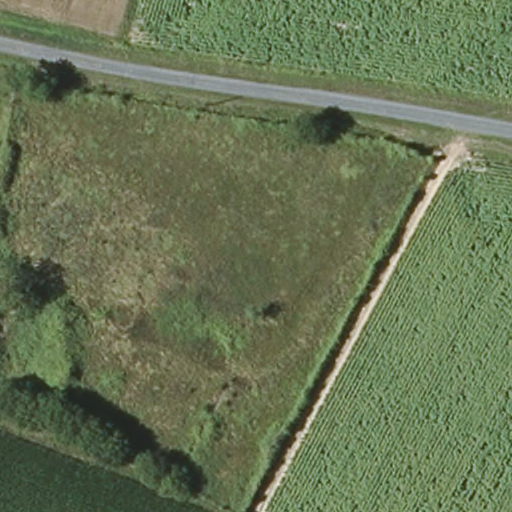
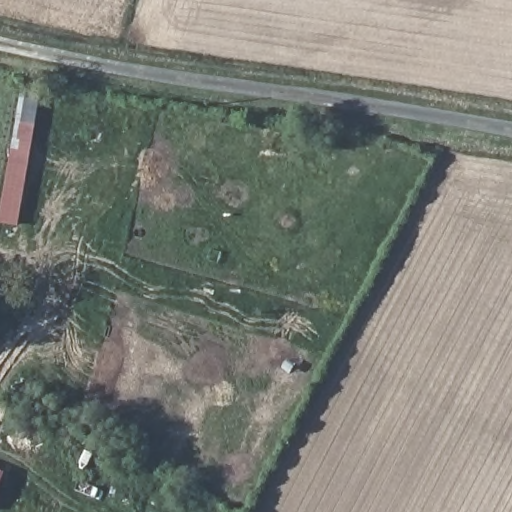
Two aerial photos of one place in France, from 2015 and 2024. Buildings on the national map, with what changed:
new [(21,92),(40,96),(17,226),(0,223),(0,212),(21,92)]
new [(4,471),(0,482),(0,469),(4,471)]

